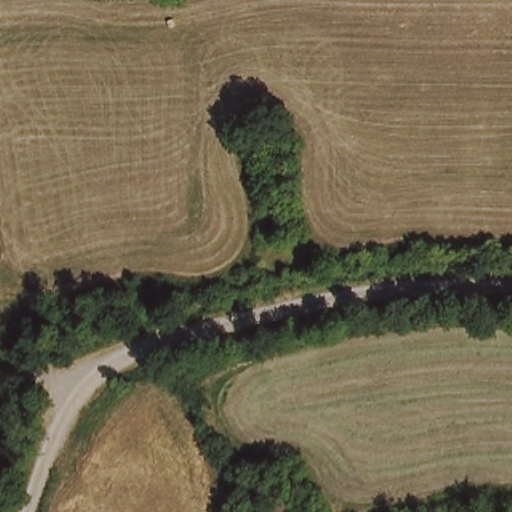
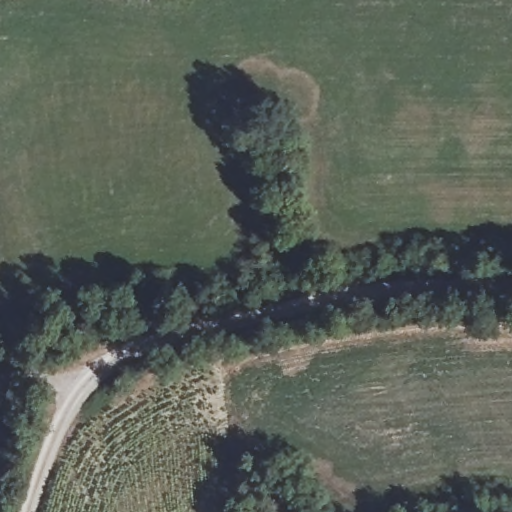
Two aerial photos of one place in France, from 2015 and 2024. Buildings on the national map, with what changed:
[]

